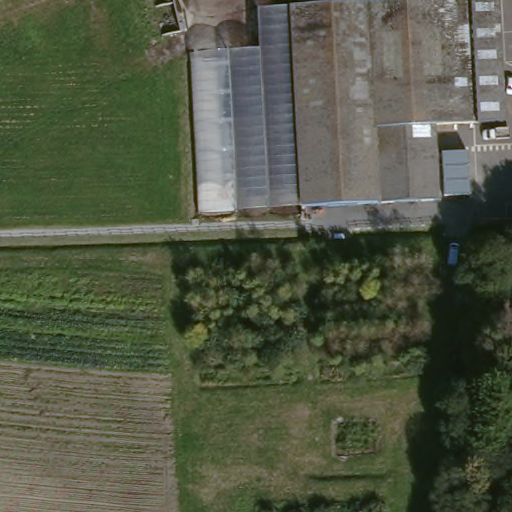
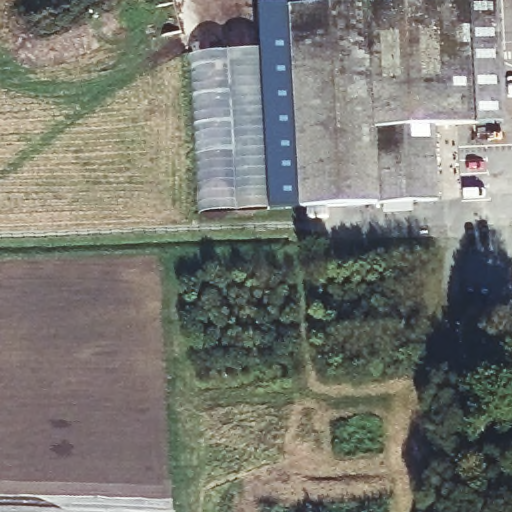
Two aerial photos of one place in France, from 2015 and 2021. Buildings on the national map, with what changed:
unchanged [(281,12),(500,0),(503,124),(432,127),(437,205),(291,210),(281,12)]
unchanged [(283,214),(198,220),(190,59),(251,55),(249,12),(273,10),(283,214)]

